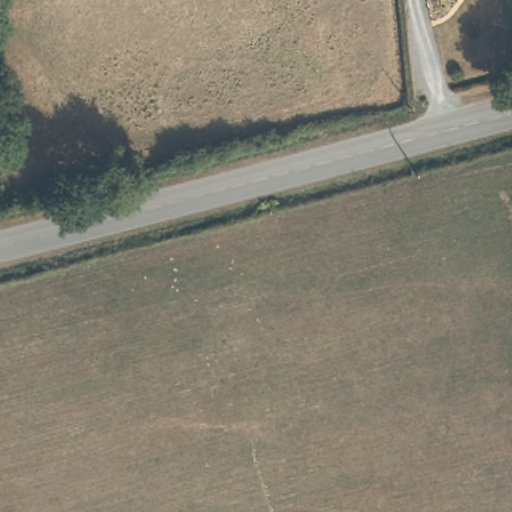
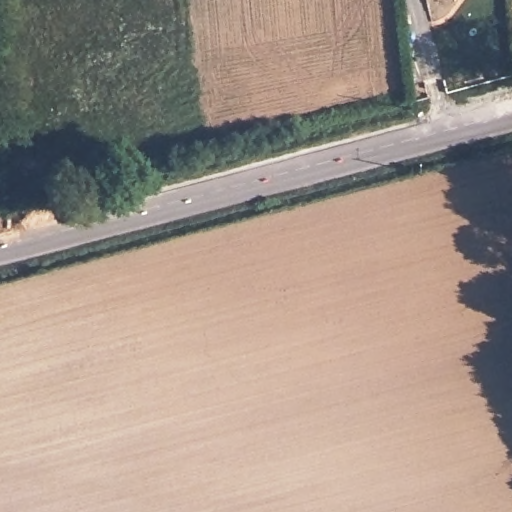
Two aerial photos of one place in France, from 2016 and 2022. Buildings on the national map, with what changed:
[]

